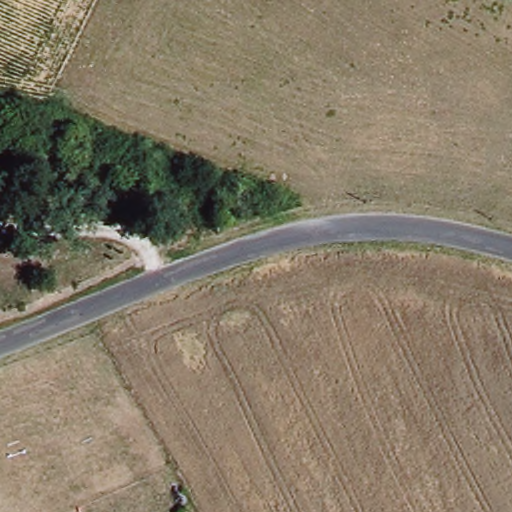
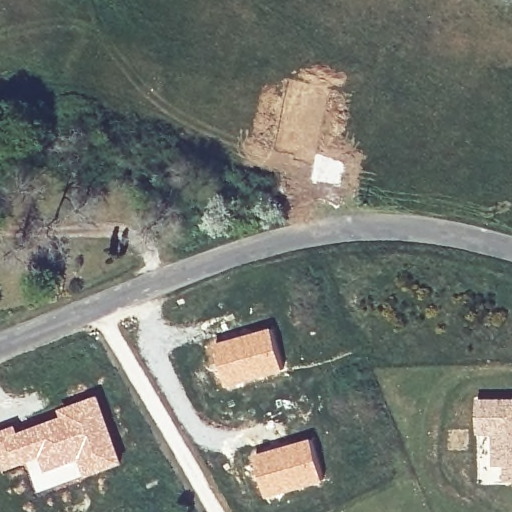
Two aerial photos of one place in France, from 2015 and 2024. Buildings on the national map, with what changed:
new [(273,326),(284,373),(225,390),(213,344),(273,326)]
new [(19,430),(59,414),(57,408),(99,393),(125,462),(36,493),(25,463),(3,471),(0,464),(0,430),(15,423),(19,430)]
new [(512,397),(512,480),(504,480),(503,466),(492,466),(491,435),(475,435),(474,397),(512,397)]
new [(312,436),(325,482),(265,497),(253,453),(312,436)]

